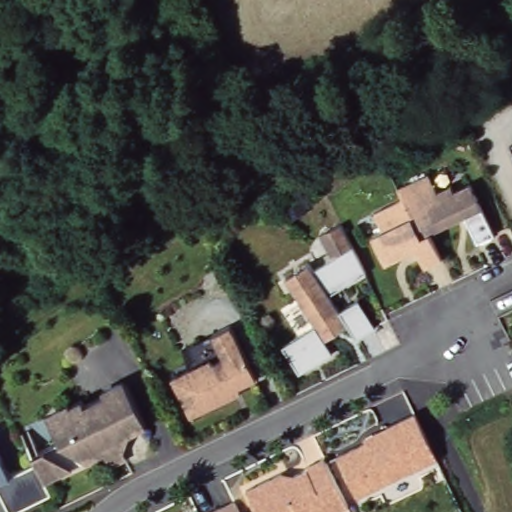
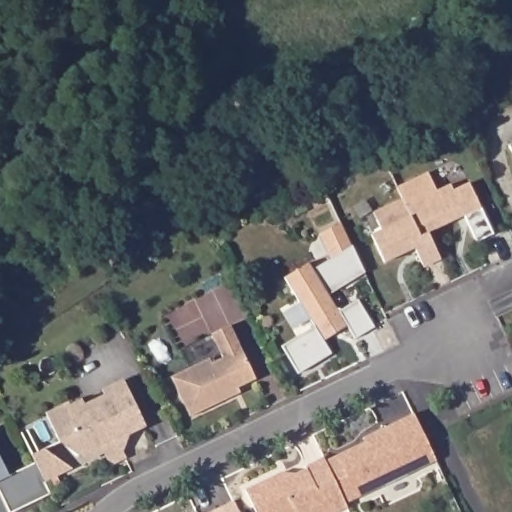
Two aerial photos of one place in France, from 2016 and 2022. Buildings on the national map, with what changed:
unchanged [(512,142),(512,145),(511,142),(512,142)]
unchanged [(435,172),(442,187),(457,180),(461,186),(476,179),(500,231),(479,242),(467,215),(434,232),(446,258),(427,269),(416,247),(389,260),(376,231),(388,224),(380,208),(408,194),(403,181),(435,172)]
unchanged [(341,222),(367,272),(328,292),(338,308),(360,300),(374,323),(356,333),(350,324),(323,340),(332,353),(301,372),(283,342),(297,336),(279,307),(301,296),(287,274),(310,260),(315,267),(333,256),(319,231),(341,222)]
unchanged [(259,377),(240,385),(243,392),(194,410),(177,374),(212,358),(215,363),(226,357),(213,330),(235,322),(259,377)]
unchanged [(148,423),(135,430),(129,445),(135,460),(117,466),(107,447),(89,456),(62,436),(53,409),(83,396),(86,402),(107,392),(107,382),(128,375),(148,423)]
unchanged [(372,437),(373,441),(395,431),(391,422),(420,409),(442,456),(362,494),(342,452),(372,437)]
unchanged [(76,467),(48,477),(53,490),(13,510),(0,481),(0,437),(17,471),(39,462),(36,451),(49,445),(76,467)]
unchanged [(287,467),(290,475),(312,464),(311,462),(330,452),(353,502),(332,512),(315,512),(305,512),(304,512),(264,512),(251,485),(287,467)]
unchanged [(246,512),(215,512),(241,501),(246,512)]

